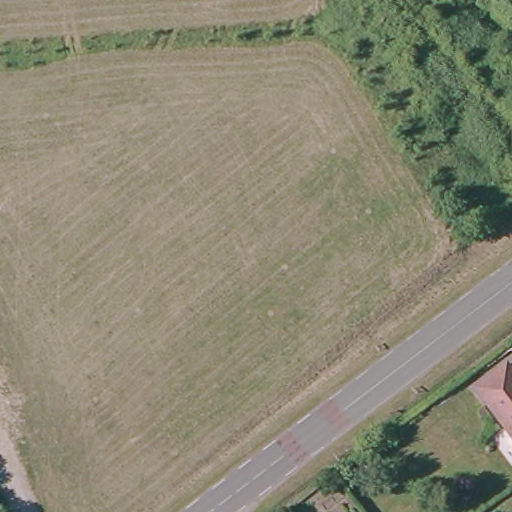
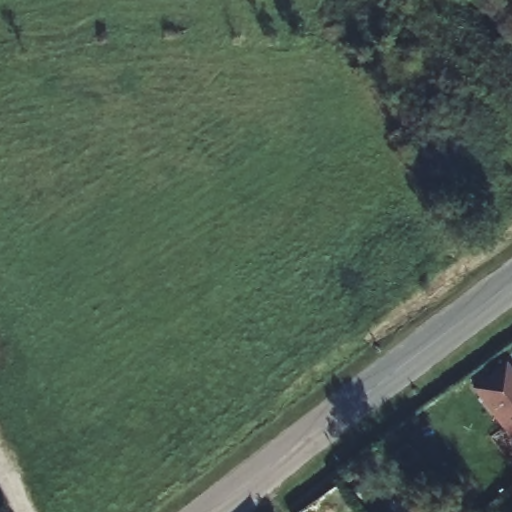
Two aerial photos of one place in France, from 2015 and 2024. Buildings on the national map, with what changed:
unchanged [(507,361),(512,367),(512,438),(473,386),(507,361)]

